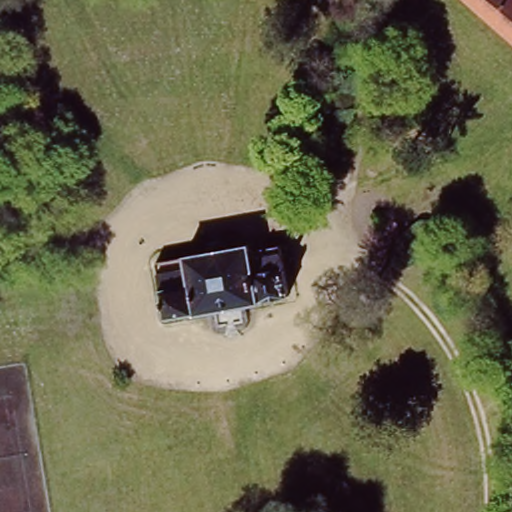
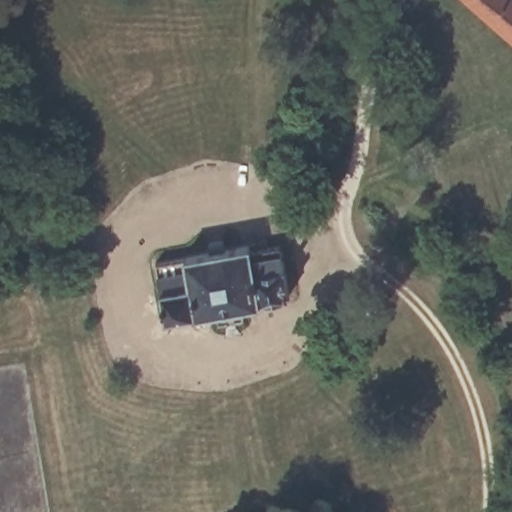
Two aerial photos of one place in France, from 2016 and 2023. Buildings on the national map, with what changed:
unchanged [(455,0),(512,0),(512,46),(455,0)]
unchanged [(171,317),(158,266),(209,255),(207,245),(231,240),(232,250),(260,244),(262,254),(278,251),(287,295),(241,304),(244,319),(218,323),(216,309),(171,317)]

